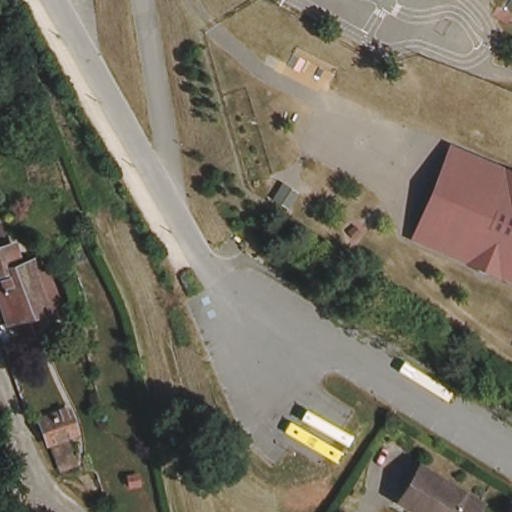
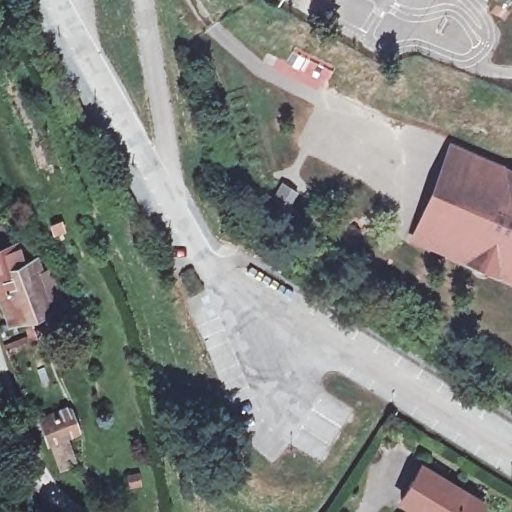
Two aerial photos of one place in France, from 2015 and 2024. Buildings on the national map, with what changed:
unchanged [(417,236),(453,152),(470,159),(464,173),(434,243),(417,236)]
unchanged [(434,243),(464,173),(470,159),(512,176),(512,277),(434,243)]
unchanged [(16,270),(0,276),(0,243),(5,241),(16,270)]
unchanged [(40,275),(49,272),(62,314),(50,318),(46,307),(5,322),(0,309),(0,276),(16,270),(36,262),(40,275)]
unchanged [(43,403),(66,395),(75,415),(67,419),(77,448),(63,452),(43,403)]
unchanged [(481,506),(478,512),(414,512),(401,505),(421,470),(481,506)]

